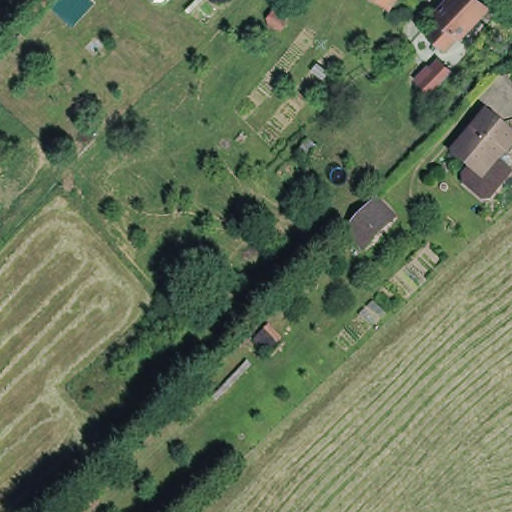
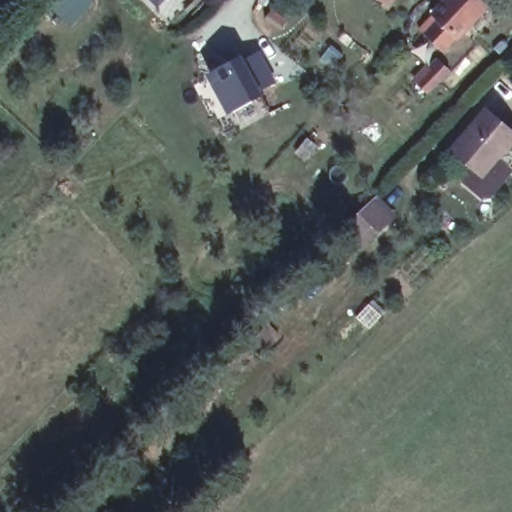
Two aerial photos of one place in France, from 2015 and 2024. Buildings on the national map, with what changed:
unchanged [(74,0),(80,0),(77,3),(74,0)]
unchanged [(388,0),(397,0),(395,4),(388,0)]
unchanged [(457,36),(454,33),(442,46),(425,31),(437,18),(430,11),(442,0),(480,0),(485,5),(457,36)]
new [(263,96),(223,118),(198,72),(236,53),(263,96)]
unchanged [(492,185),(484,187),(465,172),(464,160),(470,153),(453,138),(485,100),(512,123),(512,132),(497,148),(507,155),(508,165),(492,185)]
unchanged [(392,215),(370,240),(352,224),(375,200),(392,215)]
unchanged [(338,277),(320,291),(304,276),(323,259),(338,277)]

